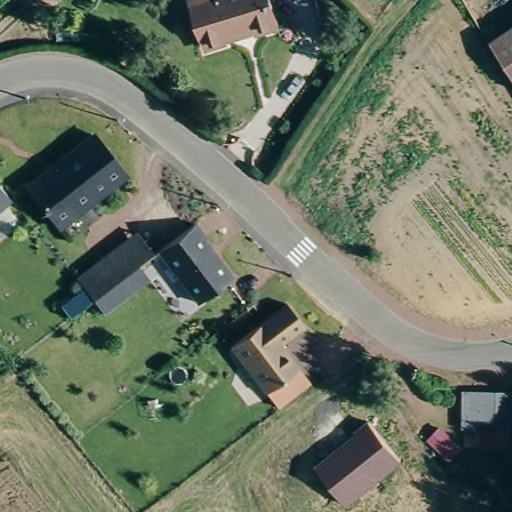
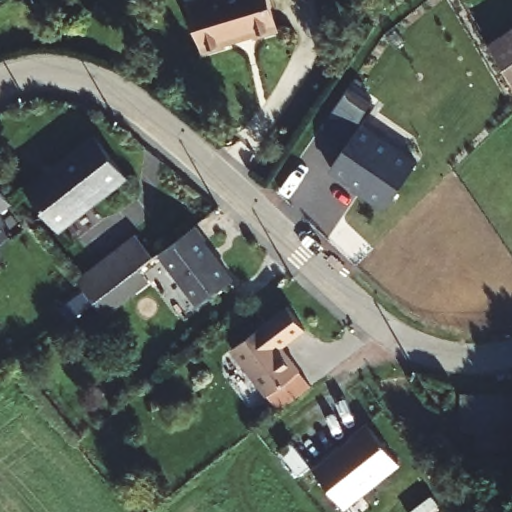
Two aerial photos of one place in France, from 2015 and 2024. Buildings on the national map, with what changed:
unchanged [(279,23),(257,30),(256,28),(228,38),(228,39),(210,45),(196,0),(272,0),(279,23)]
unchanged [(512,35),(512,78),(492,48),(512,35)]
new [(329,171),(349,142),(325,125),(349,89),(374,105),(364,121),(420,160),(386,210),(329,171)]
unchanged [(91,133),(128,176),(61,234),(24,190),(91,133)]
unchanged [(11,205),(0,215),(0,193),(11,205)]
unchanged [(186,230),(191,227),(201,239),(201,243),(229,280),(196,307),(156,253),(186,230)]
unchanged [(104,316),(75,279),(134,233),(154,257),(140,269),(150,281),(104,316)]
unchanged [(283,309),(299,333),(276,350),(294,374),(261,399),(225,352),(283,309)]
unchanged [(510,390),(509,426),(462,425),(464,394),(510,390)]
unchanged [(353,433),(368,422),(401,464),(344,508),(315,468),(355,436),(353,433)]

